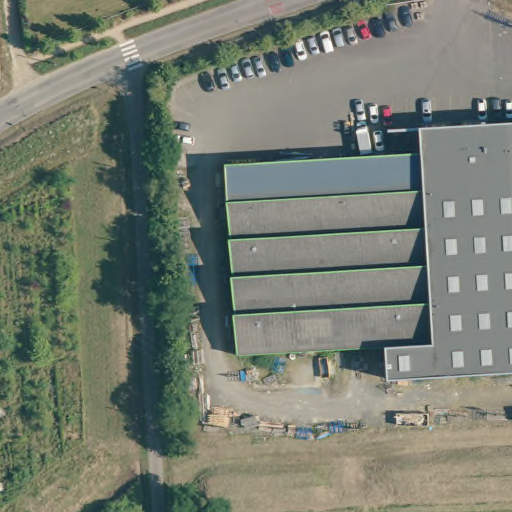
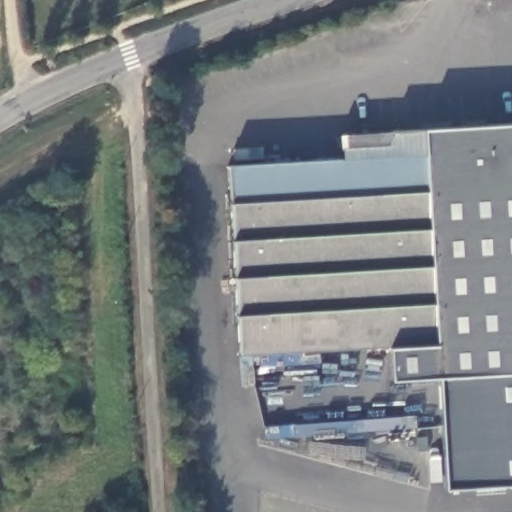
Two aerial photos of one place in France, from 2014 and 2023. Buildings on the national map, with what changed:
unchanged [(512,118),(512,368),(386,375),(384,342),(234,350),(223,159),(419,148),(418,123),(512,118)]
new [(512,368),(512,483),(446,487),(439,372),(512,368)]

